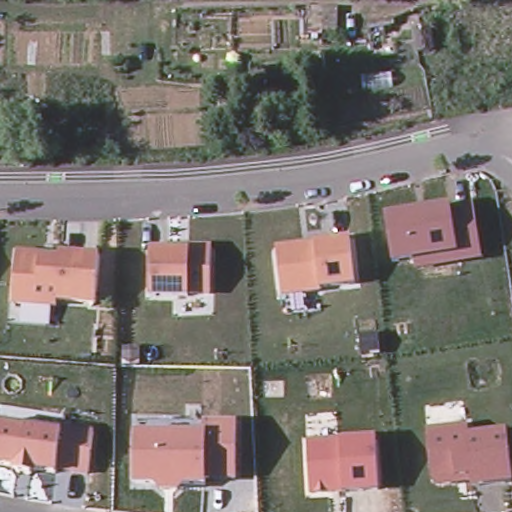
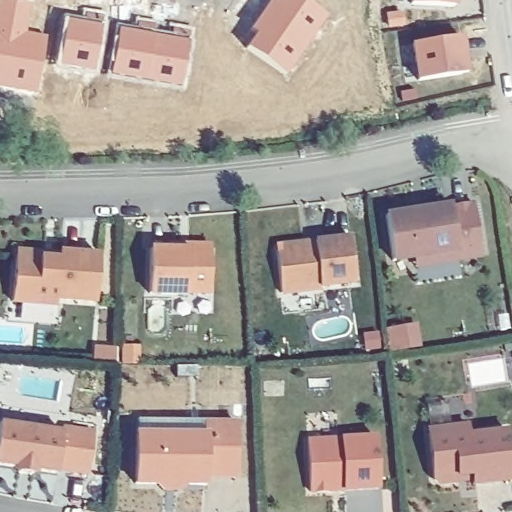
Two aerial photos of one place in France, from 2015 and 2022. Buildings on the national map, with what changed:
new [(9,0),(32,5),(27,34),(47,36),(39,91),(0,84),(0,0),(9,0)]
new [(290,70),(253,44),(261,31),(256,26),(274,0),(275,0),(280,3),(282,0),(306,0),(327,14),(290,70)]
new [(455,0),(455,9),(413,6),(413,0),(455,0)]
new [(103,26),(99,70),(64,64),(72,20),(103,26)]
demolished [(395,56),(372,60),(370,29),(392,26),(395,56)]
new [(190,41),(184,85),(115,73),(122,29),(190,41)]
new [(415,46),(463,39),(463,38),(469,75),(464,76),(421,82),(415,46)]
unchanged [(484,260),(415,271),(415,263),(394,266),(386,211),(473,201),(484,260)]
unchanged [(355,287),(281,295),(276,243),(349,236),(355,287)]
unchanged [(211,292),(189,291),(189,299),(149,298),(150,248),(191,249),(191,242),(213,242),(211,292)]
unchanged [(17,260),(23,255),(37,256),(42,262),(60,263),(61,256),(101,259),(97,306),(58,303),(57,309),(13,306),(17,260)]
unchanged [(239,480),(207,479),(207,491),(184,490),(179,494),(160,494),(156,490),(136,490),(137,431),(204,433),(203,420),(238,420),(239,480)]
unchanged [(91,474),(59,467),(58,478),(0,469),(0,426),(62,435),(63,428),(95,431),(91,474)]
unchanged [(472,435),(509,431),(512,460),(512,481),(432,490),(426,429),(470,426),(472,435)]
unchanged [(381,492),(313,497),(307,441),(378,435),(381,492)]

